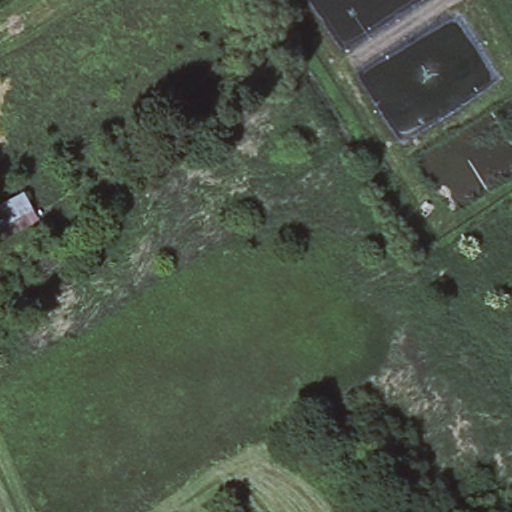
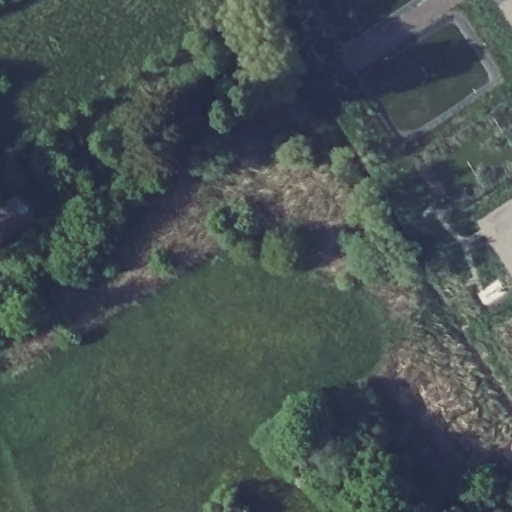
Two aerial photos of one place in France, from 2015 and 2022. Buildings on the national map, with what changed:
unchanged [(0,236),(0,204),(21,188),(39,219),(3,242),(0,236)]

